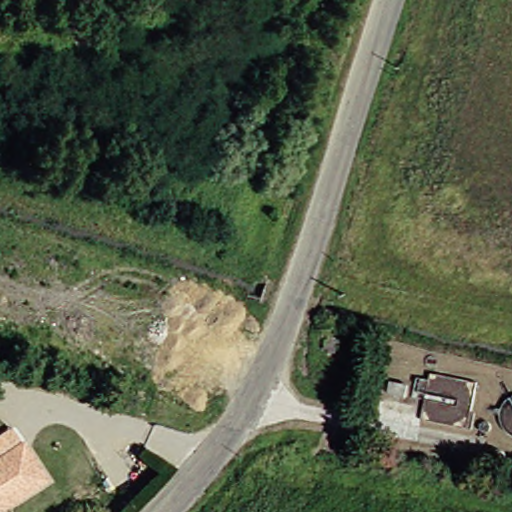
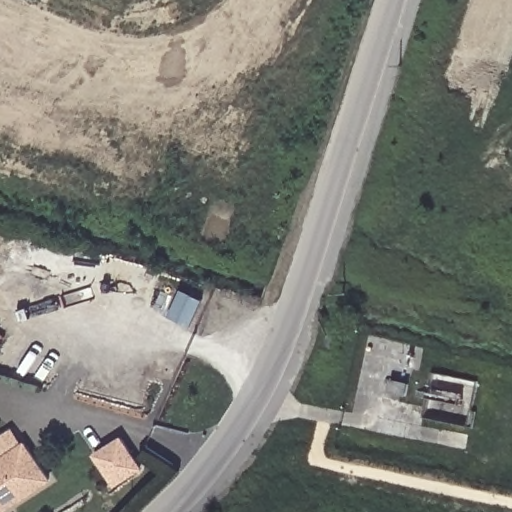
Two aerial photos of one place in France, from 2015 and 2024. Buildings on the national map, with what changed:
unchanged [(409,384),(407,395),(390,391),(392,380),(409,384)]
unchanged [(480,428),(478,427),(477,425),(476,422),(476,420),(477,418),(478,416),(481,415),(483,414),(486,415),(488,416),(490,419),(491,422),(490,424),(489,426),(487,428),(485,429),(482,429),(480,428)]
new [(92,453),(122,434),(144,468),(115,487),(92,453)]
unchanged [(493,460),(491,459),(490,457),(490,455),(490,452),(491,450),(492,449),(495,448),(497,448),(500,449),(502,452),(502,454),(502,457),(501,459),(499,460),(497,461),(495,461),(493,460)]
unchanged [(22,449),(47,486),(12,512),(0,512),(0,465),(22,449)]

